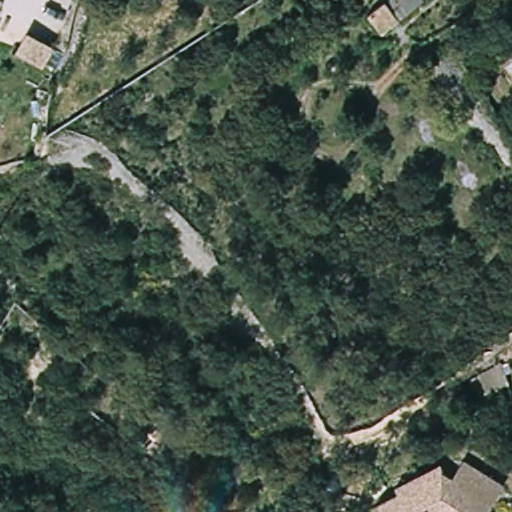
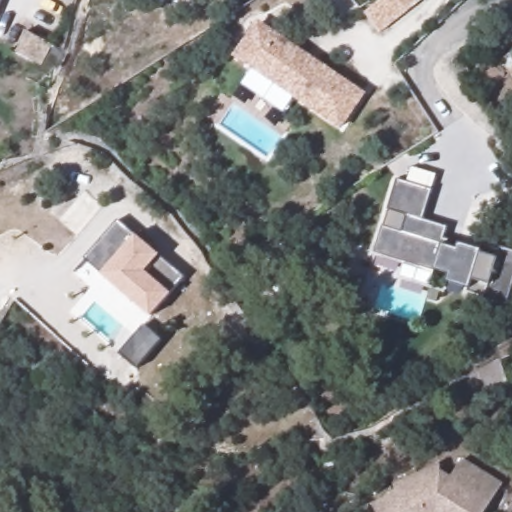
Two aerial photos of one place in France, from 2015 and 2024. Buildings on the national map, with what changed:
unchanged [(58,9),(61,0),(75,0),(73,11),(57,50),(41,41),(58,9)]
new [(366,11),(380,0),(424,0),(381,32),(366,11)]
demolished [(407,0),(415,11),(400,22),(385,2),(388,0),(407,0)]
new [(366,94),(341,131),(231,56),(258,20),(366,94)]
unchanged [(14,27),(41,41),(30,62),(3,46),(14,27)]
unchanged [(500,58),(512,47),(512,73),(500,58)]
new [(433,190),(423,220),(448,228),(445,239),(459,244),(480,250),(481,245),(499,251),(500,247),(512,251),(512,289),(507,305),(492,302),(492,300),(487,295),(467,290),(464,297),(444,292),(447,282),(449,275),(437,271),(429,287),(399,278),(403,265),(371,254),(374,242),(377,244),(382,226),(384,227),(389,210),(387,210),(397,180),(433,190)]
new [(133,236),(134,234),(160,255),(184,278),(172,295),(151,318),(101,275),(103,272),(84,258),(116,220),(133,236)]
new [(161,340),(136,370),(118,355),(143,325),(161,340)]
unchanged [(462,395),(450,400),(439,378),(460,365),(472,388),(462,395)]
unchanged [(382,498),(406,487),(399,477),(452,453),(451,467),(459,470),(468,460),(508,483),(490,512),(388,512),(382,498)]

